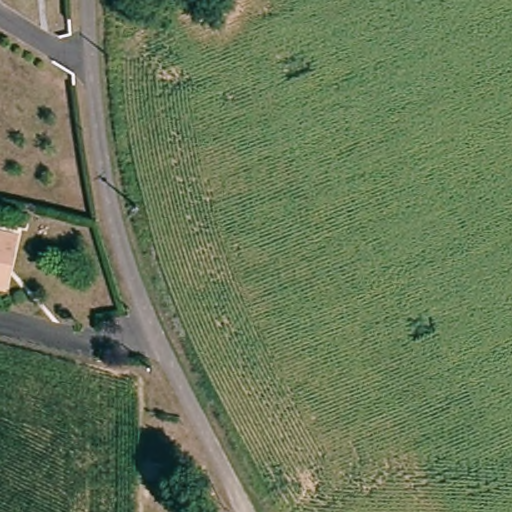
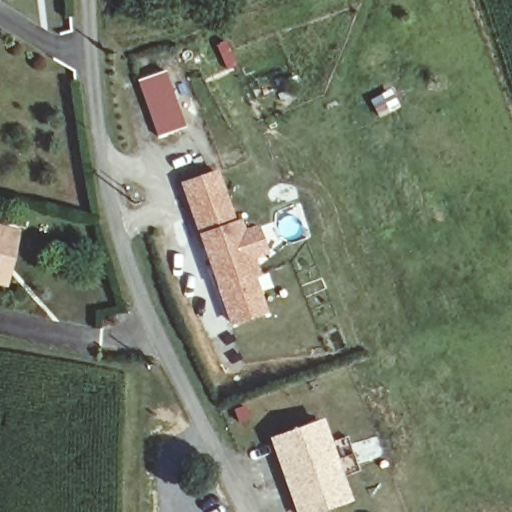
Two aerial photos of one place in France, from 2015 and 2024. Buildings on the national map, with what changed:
new [(136,81),(164,71),(184,127),(157,137),(136,81)]
new [(231,325),(179,183),(216,168),(236,221),(239,218),(244,229),(256,224),(268,255),(255,259),(261,275),(255,277),(269,313),(231,325)]
unchanged [(0,281),(0,230),(17,234),(11,258),(5,282),(0,281)]
new [(320,418),(351,501),(323,512),(294,512),(267,437),(320,418)]

